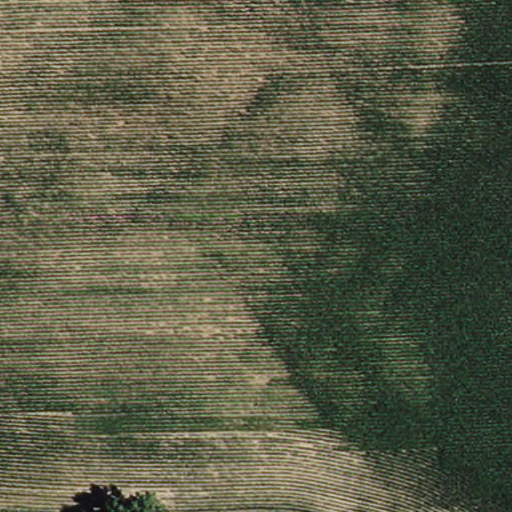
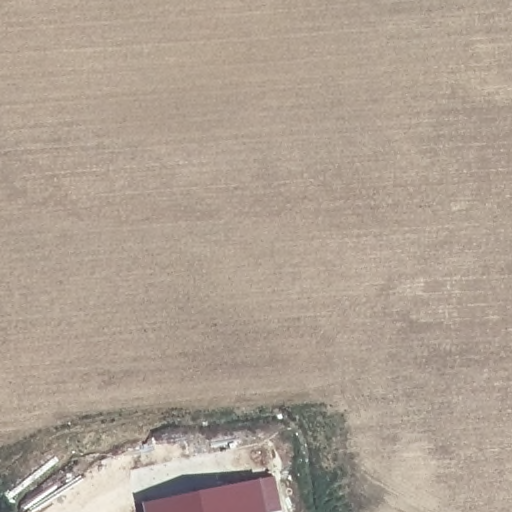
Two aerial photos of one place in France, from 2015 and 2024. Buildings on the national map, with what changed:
new [(256,483),(262,512),(142,512),(141,503),(256,483)]

